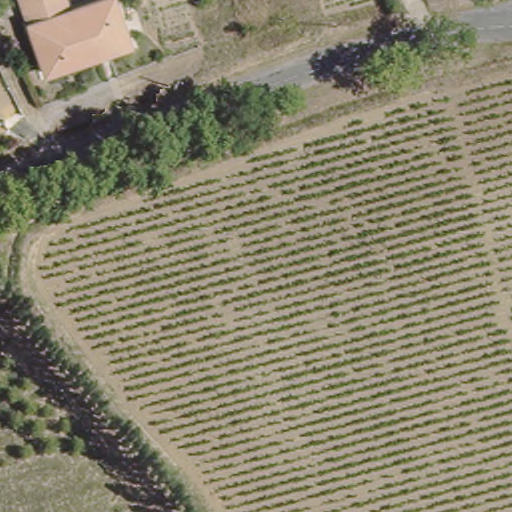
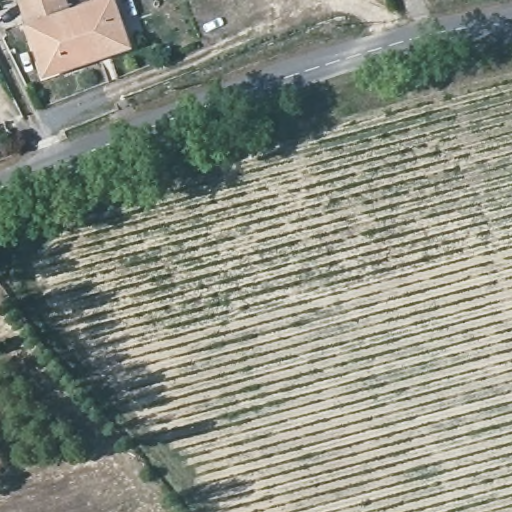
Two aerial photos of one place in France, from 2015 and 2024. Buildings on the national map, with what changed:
unchanged [(49,80),(30,30),(20,6),(38,0),(63,0),(70,18),(111,3),(127,40),(131,49),(102,60),(49,80)]

